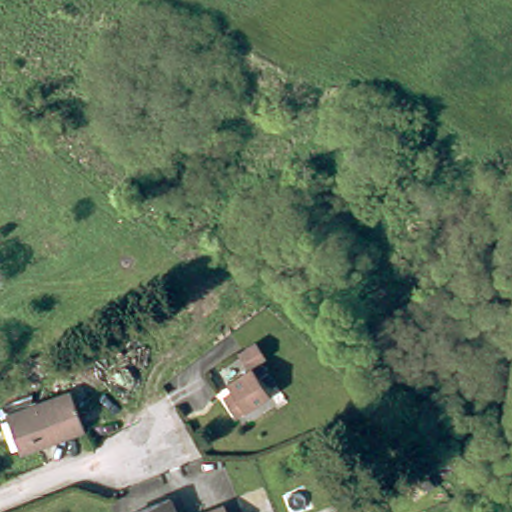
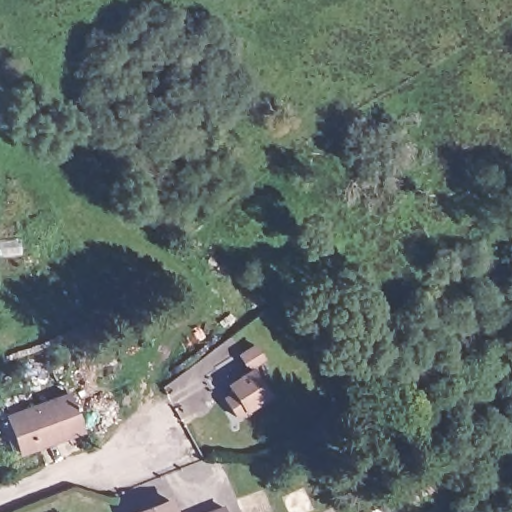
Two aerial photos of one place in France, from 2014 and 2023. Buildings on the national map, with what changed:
unchanged [(220,395),(232,387),(227,378),(249,365),(266,390),(244,405),(242,403),(229,411),(220,395)]
unchanged [(269,390),(275,386),(282,397),(275,402),(269,390)]
unchanged [(83,430),(21,453),(7,417),(70,393),(83,430)]
unchanged [(162,498),(168,512),(125,512),(162,498)]
unchanged [(215,506),(218,512),(197,512),(215,506)]

